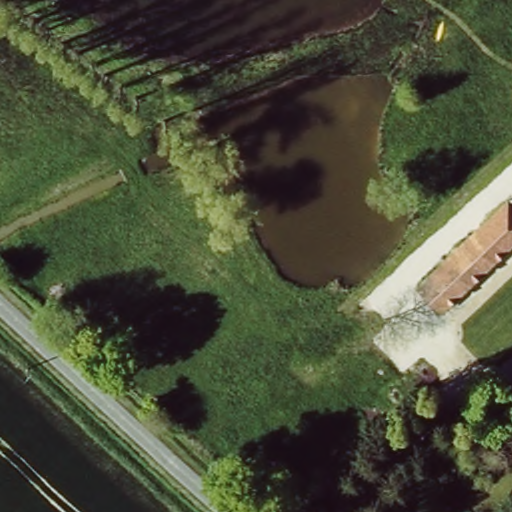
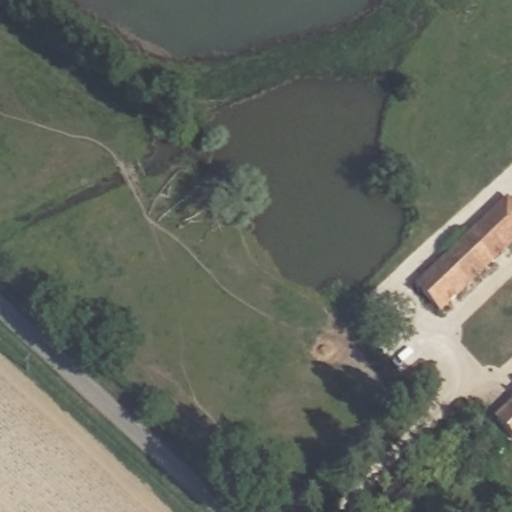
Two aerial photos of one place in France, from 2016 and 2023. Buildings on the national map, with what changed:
unchanged [(411,286),(512,188),(512,254),(444,322),(411,286)]

